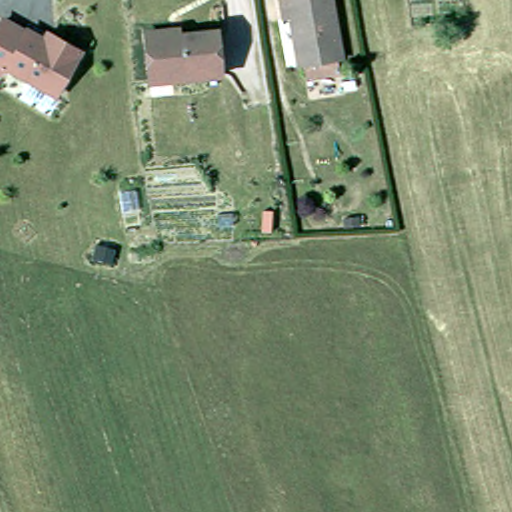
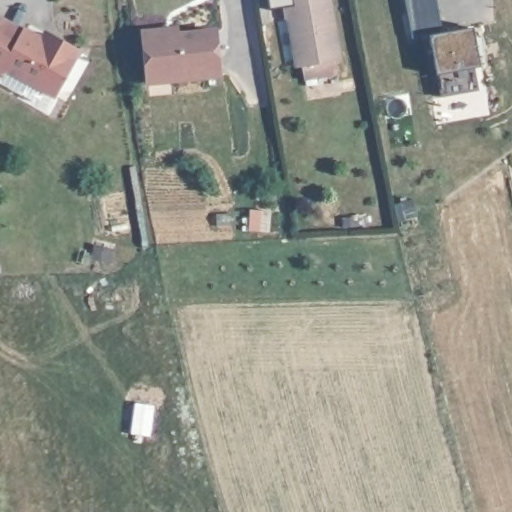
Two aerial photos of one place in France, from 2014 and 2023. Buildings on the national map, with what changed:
unchanged [(342,55),(338,55),(340,69),(308,75),(305,61),(300,62),(291,12),(284,13),(281,0),(332,0),(342,55)]
new [(445,33),(472,28),(480,65),(472,66),(476,89),(440,95),(436,71),(430,32),(413,35),(407,0),(438,0),(445,33)]
unchanged [(0,63),(0,18),(15,26),(16,25),(33,34),(36,27),(50,34),(69,45),(45,89),(0,63)]
unchanged [(226,75),(155,81),(150,31),(173,30),(183,29),(185,33),(223,30),(226,75)]

